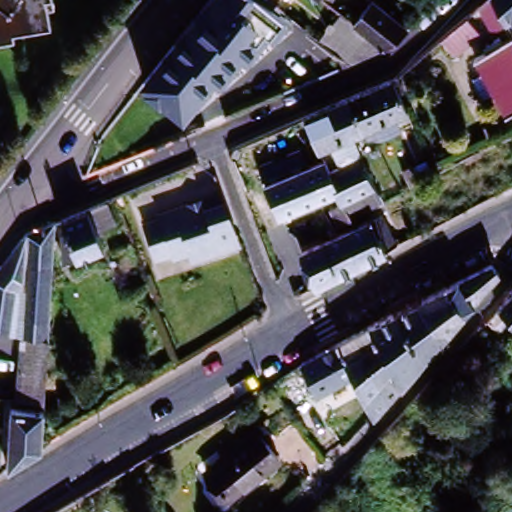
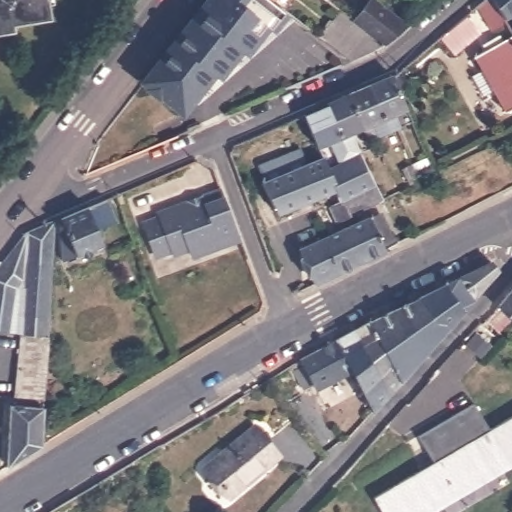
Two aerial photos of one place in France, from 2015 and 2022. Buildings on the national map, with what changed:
unchanged [(0,0),(49,0),(49,3),(43,4),(45,19),(7,23),(8,29),(0,30),(0,0)]
unchanged [(165,51),(207,0),(262,0),(267,4),(281,15),(258,43),(253,39),(232,67),(227,63),(205,90),(200,86),(178,114),(140,84),(165,51)]
unchanged [(267,4),(262,0),(271,0),(267,4)]
unchanged [(326,5),(319,0),(330,0),(326,5)]
unchanged [(505,22),(507,26),(494,34),(478,9),(489,0),(512,0),(512,19),(505,22)]
unchanged [(380,48),(350,24),(368,1),(396,23),(401,18),(407,25),(404,29),(380,48)]
unchanged [(315,42),(337,14),(350,24),(380,48),(376,52),(346,65),(317,43),(315,42)]
unchanged [(469,16),(484,34),(456,57),(441,39),(469,16)]
unchanged [(472,79),(483,72),(476,59),(491,50),(487,44),(500,37),(503,43),(512,39),(512,111),(507,114),(495,93),(484,99),(472,79)]
unchanged [(367,88),(391,78),(396,74),(403,88),(396,91),(404,112),(391,117),(396,130),(393,131),(387,134),(377,139),(371,125),(360,130),(348,135),(354,148),(358,157),(337,167),(327,144),(315,149),(307,130),(301,117),(324,107),(346,98),(367,88)]
unchanged [(334,225),(328,206),(339,202),(334,190),(275,213),(259,183),(321,160),(326,172),(337,167),(358,157),(379,202),(334,225)]
unchanged [(231,240),(215,246),(216,248),(186,258),(183,250),(168,256),(166,252),(150,258),(138,226),(154,219),(152,215),(181,205),(196,199),(213,193),(231,240)]
unchanged [(106,242),(65,259),(63,229),(67,227),(62,215),(107,196),(117,218),(102,224),(105,230),(101,232),(106,242)]
unchanged [(43,341),(44,333),(19,330),(0,327),(0,264),(26,230),(56,217),(49,341),(43,341)]
unchanged [(364,219),(365,222),(375,217),(386,241),(391,239),(395,246),(390,248),(314,286),(297,251),(364,219)]
unchanged [(486,262),(497,256),(502,263),(493,273),(456,314),(438,333),(415,358),(389,309),(417,295),(439,285),(486,262)]
unchanged [(508,317),(497,328),(490,321),(495,315),(500,308),(499,306),(512,292),(512,321),(508,317)]
unchanged [(365,320),(389,309),(415,358),(397,379),(365,320)]
unchanged [(365,320),(397,379),(386,391),(351,328),(365,320)]
unchanged [(349,367),(333,338),(351,328),(386,391),(371,407),(349,367)]
unchanged [(46,396),(16,395),(19,330),(44,333),(43,341),(49,341),(46,396)]
unchanged [(349,367),(315,385),(312,380),(301,385),(289,363),(333,338),(349,367)]
unchanged [(10,463),(8,461),(11,402),(46,404),(43,443),(10,463)]
new [(431,464),(418,440),(474,407),(490,434),(512,422),(512,465),(431,512),(381,512),(375,502),(420,475),(418,472),(431,464)]
unchanged [(273,459),(223,501),(198,473),(249,431),(273,459)]
new [(446,512),(431,512),(512,465),(512,473),(446,512)]

